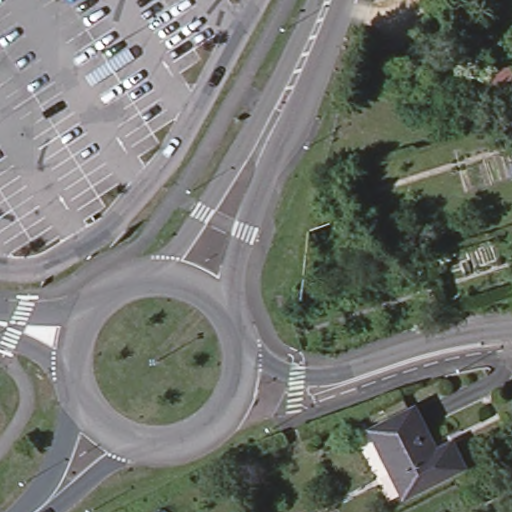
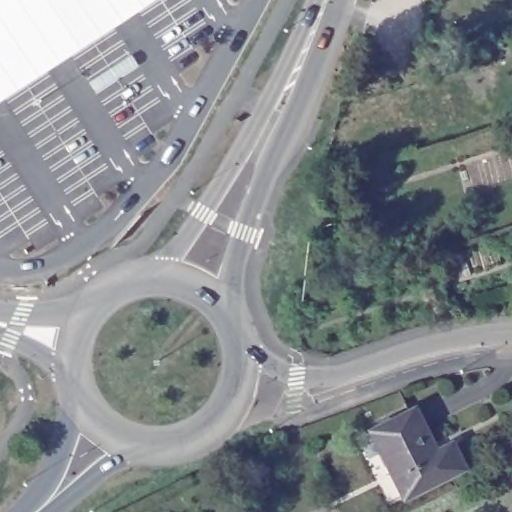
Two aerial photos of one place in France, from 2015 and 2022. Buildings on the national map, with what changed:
new [(0,65),(0,0),(157,0),(17,91),(0,65)]
unchanged [(484,72),(512,65),(512,89),(489,95),(484,72)]
unchanged [(435,450),(453,441),(464,465),(402,496),(368,430),(414,407),(435,450)]

